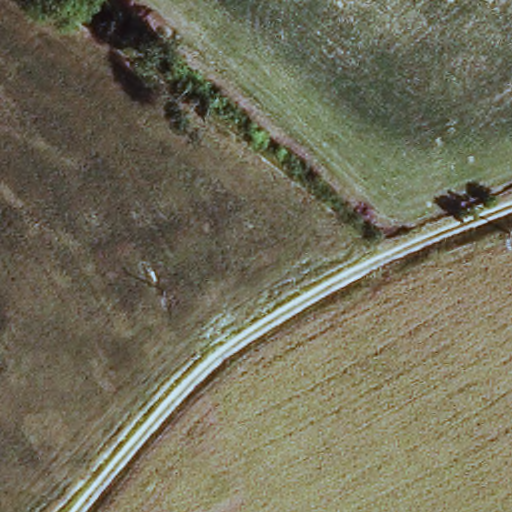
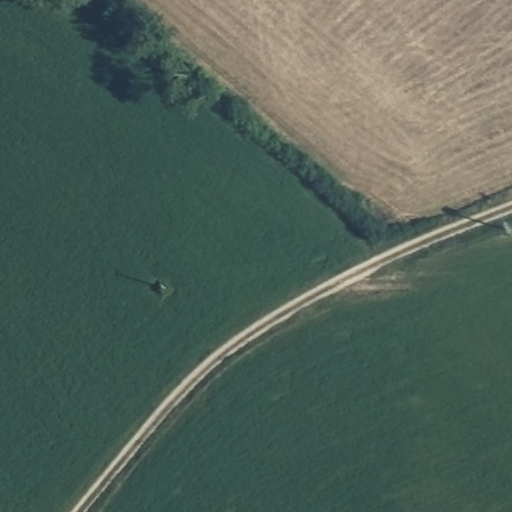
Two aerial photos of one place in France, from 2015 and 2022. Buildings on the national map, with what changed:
[]

